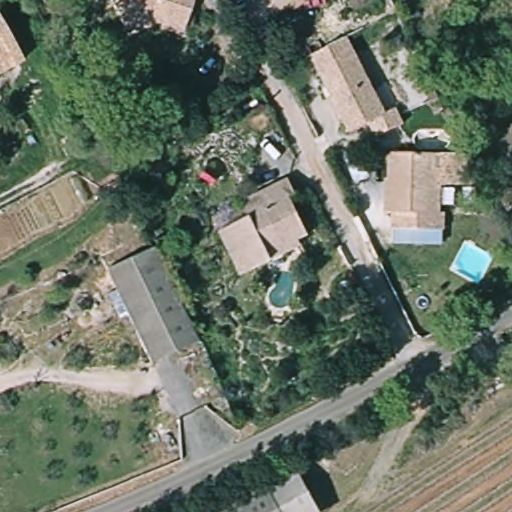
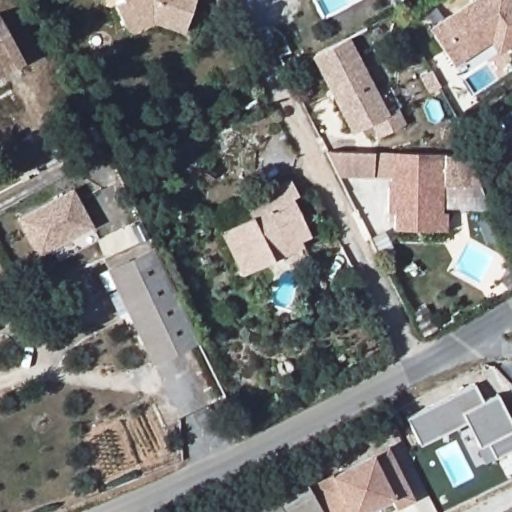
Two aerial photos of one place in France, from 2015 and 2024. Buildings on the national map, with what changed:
unchanged [(126,6),(136,1),(135,0),(205,0),(195,31),(162,21),(140,32),(138,27),(126,6)]
new [(512,0),(512,45),(498,55),(491,43),(454,66),(430,29),(473,0),(512,0)]
unchanged [(22,61),(0,73),(0,19),(22,61)]
unchanged [(385,114),(399,110),(406,123),(377,137),(369,123),(348,131),(311,59),(350,38),(385,114)]
unchanged [(512,142),(512,146),(510,143),(512,142)]
unchanged [(450,154),(448,210),(454,210),(453,231),(408,228),(408,208),(394,208),(396,184),(401,184),(402,150),(450,154)]
new [(372,178),(339,177),(327,153),(329,151),(373,151),(372,178)]
unchanged [(302,199),(294,203),(301,216),(308,213),(316,227),(310,237),(312,241),(292,251),(294,256),(247,277),(227,235),(255,222),(252,214),(267,205),(263,197),(294,183),(302,199)]
new [(37,255),(17,218),(72,188),(91,226),(37,255)]
unchanged [(153,365),(107,272),(151,250),(198,344),(153,365)]
new [(479,447),(466,422),(421,445),(407,417),(475,383),(483,402),(498,393),(509,416),(512,415),(512,449),(486,462),(479,447)]
new [(386,447),(412,497),(395,505),(389,494),(354,512),(329,512),(315,484),(386,447)]
unchanged [(305,472),(324,512),(286,512),(274,487),(305,472)]
unchanged [(286,512),(224,512),(274,487),(286,512)]

